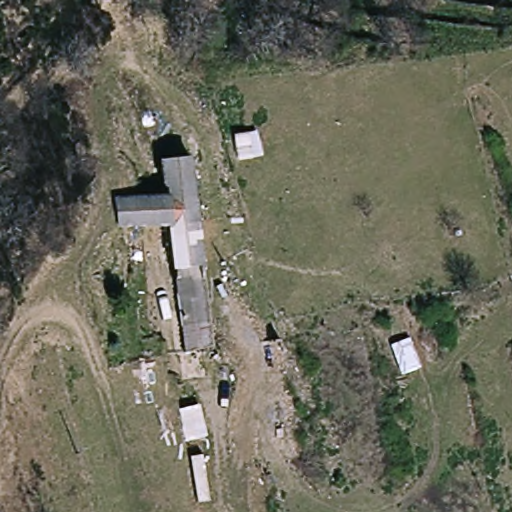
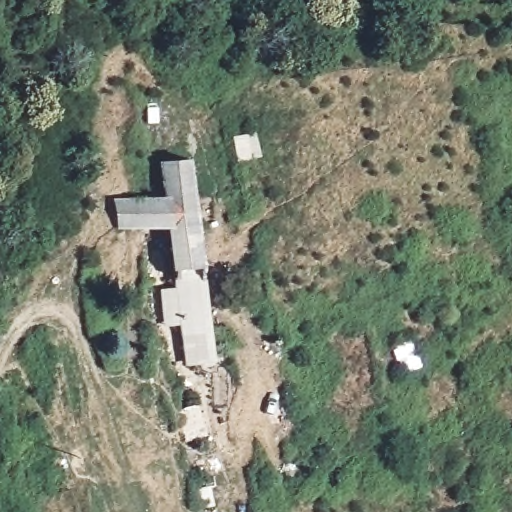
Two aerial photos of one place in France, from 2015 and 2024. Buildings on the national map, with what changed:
unchanged [(135,226),(118,228),(114,199),(167,194),(163,156),(189,152),(199,206),(206,249),(177,253),(173,223),(135,226)]
unchanged [(178,263),(207,259),(219,341),(190,345),(178,263)]

